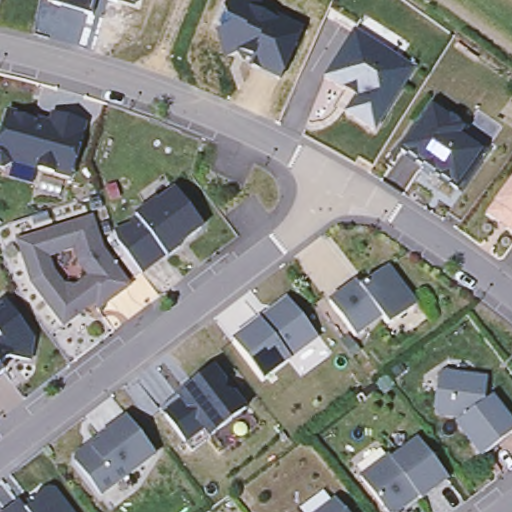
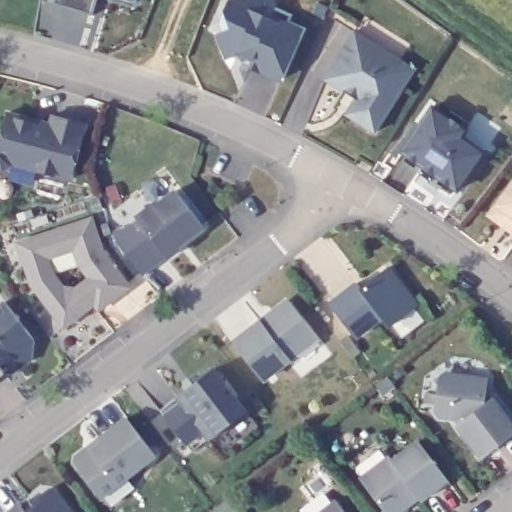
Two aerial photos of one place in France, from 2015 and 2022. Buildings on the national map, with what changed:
unchanged [(61,0),(97,0),(93,12),(61,0)]
unchanged [(123,0),(121,0),(133,0),(131,4),(123,0)]
unchanged [(228,0),(259,0),(261,12),(305,30),(283,79),(251,69),(253,59),(236,53),(229,60),(214,39),(228,0)]
unchanged [(324,80),(354,33),(399,61),(414,70),(374,133),(345,115),(355,99),(344,93),(324,80)]
unchanged [(417,174),(422,167),(399,152),(419,125),(431,108),(444,117),(464,131),(460,138),(483,153),(456,191),(434,176),(429,182),(417,174)]
unchanged [(3,166),(0,165),(0,137),(8,109),(50,120),(52,111),(85,120),(70,175),(38,167),(11,160),(11,161),(3,166)]
unchanged [(491,216),(512,188),(512,232),(511,230),(503,225),(491,216)]
unchanged [(180,249),(166,259),(165,257),(141,275),(118,244),(114,234),(128,230),(138,222),(136,219),(156,203),(158,205),(176,192),(201,226),(201,230),(188,241),(178,247),(180,249)]
unchanged [(63,323),(31,281),(26,264),(18,239),(42,231),(91,215),(103,248),(129,283),(98,306),(94,300),(82,309),(63,323)]
unchanged [(381,319),(354,339),(329,305),(356,284),(360,290),(366,285),(388,269),(417,306),(388,328),(381,319)]
unchanged [(33,336),(30,357),(9,354),(0,361),(0,302),(5,298),(33,336)]
unchanged [(271,314),(284,304),(291,305),(317,340),(262,382),(233,343),(260,322),(271,314)]
unchanged [(0,363),(3,368),(0,371),(0,363)]
unchanged [(186,442),(166,415),(183,404),(177,394),(214,367),(247,409),(209,437),(193,449),(186,442)]
unchanged [(459,425),(456,419),(439,417),(435,411),(439,379),(444,375),(486,381),(484,397),(489,403),(492,400),(512,427),(512,435),(481,458),(457,427),(459,425)]
unchanged [(85,452),(98,441),(126,420),(154,457),(100,499),(75,466),(76,459),(85,452)]
unchanged [(401,512),(384,512),(360,480),(389,458),(392,462),(418,443),(447,481),(421,502),(418,498),(404,509),(401,512)]
unchanged [(30,504),(46,492),(53,493),(68,512),(12,512),(19,506),(23,510),(30,504)]
unchanged [(336,503),(342,512),(324,512),(336,503)]

